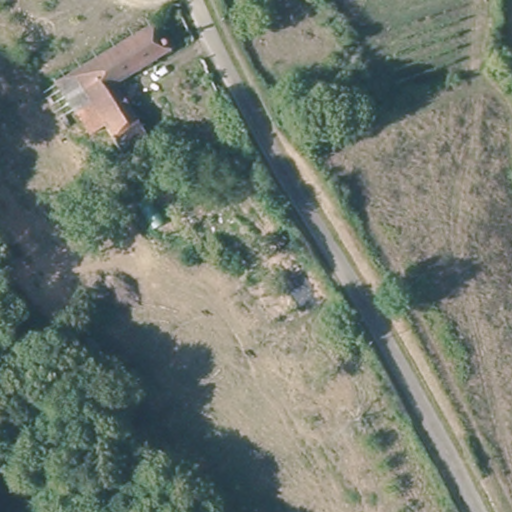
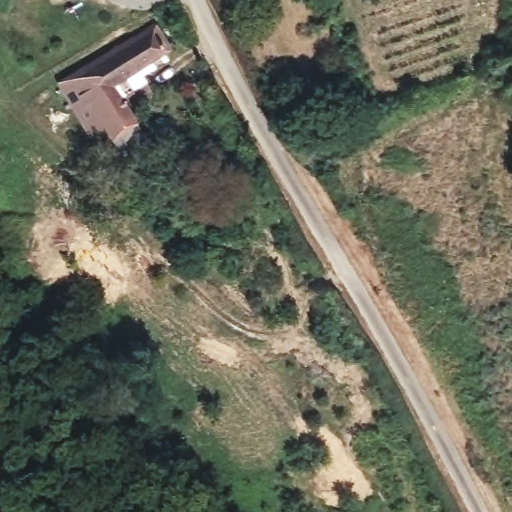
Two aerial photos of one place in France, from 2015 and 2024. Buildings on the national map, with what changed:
unchanged [(172,45),(118,80),(154,141),(129,156),(106,120),(91,127),(63,75),(158,19),(172,45)]

